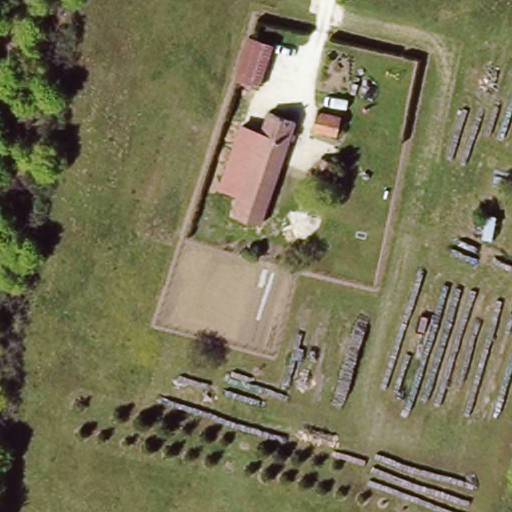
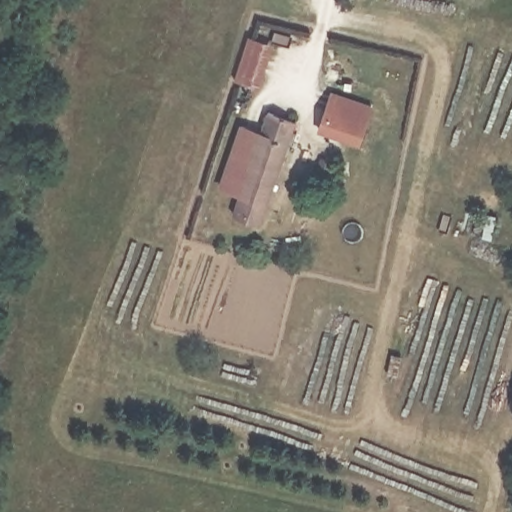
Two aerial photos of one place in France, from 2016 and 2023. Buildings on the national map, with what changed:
unchanged [(249,37),(272,45),(258,89),(234,80),(249,37)]
new [(316,133),(330,92),(373,106),(359,146),(316,133)]
unchanged [(256,214),(231,205),(239,181),(223,176),(240,123),(255,128),(263,104),(290,112),(256,214)]
demolished [(316,111),(340,116),(336,134),(313,129),(316,111)]
unchanged [(316,176),(312,175),(318,156),(330,160),(322,189),(313,186),(316,176)]

